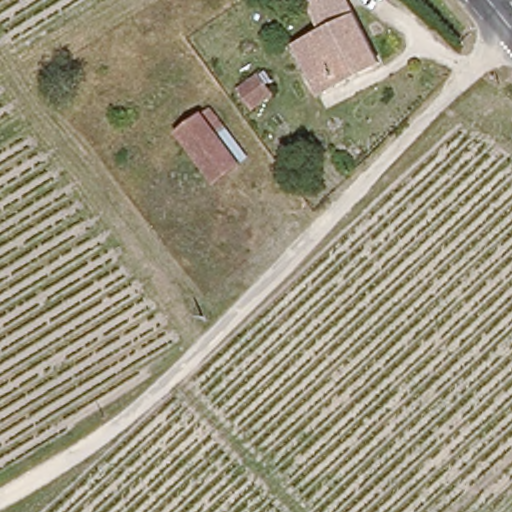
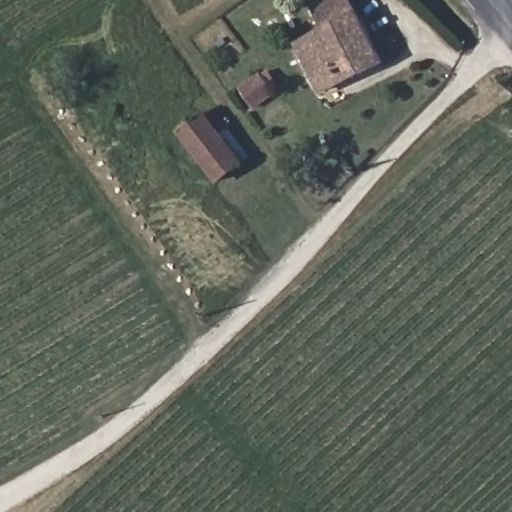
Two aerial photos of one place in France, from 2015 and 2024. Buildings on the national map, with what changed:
unchanged [(299,45),(323,32),(310,4),(317,0),(348,0),(381,64),(323,94),(299,45)]
unchanged [(260,82),(245,61),(263,50),(276,70),(260,82)]
unchanged [(220,181),(182,131),(206,115),(215,108),(229,125),(219,132),(244,164),(220,181)]

